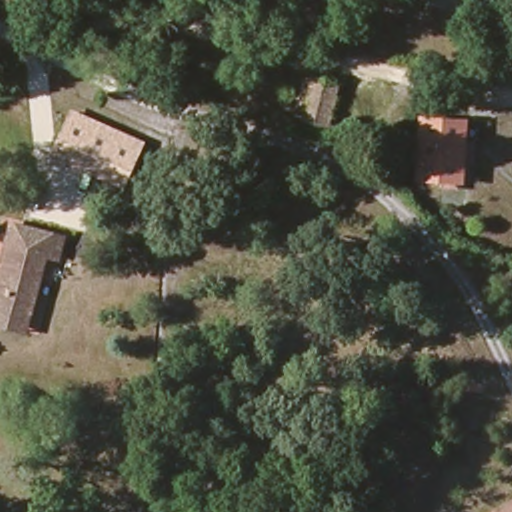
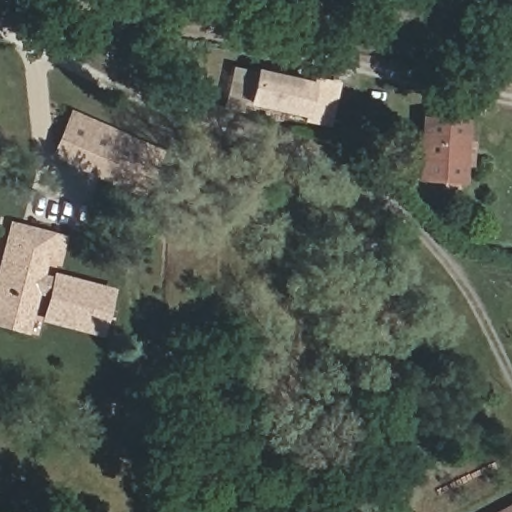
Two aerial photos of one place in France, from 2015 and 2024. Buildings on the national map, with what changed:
new [(247,105),(247,100),(227,95),(231,66),(255,71),(256,67),(312,80),(303,117),(247,105)]
unchanged [(327,125),(302,120),(312,80),(336,85),(327,125)]
unchanged [(123,191),(47,155),(70,109),(145,142),(123,191)]
unchanged [(465,182),(424,179),(427,119),(469,122),(465,182)]
unchanged [(0,310),(0,262),(10,225),(62,239),(57,260),(45,256),(29,317),(0,310)]
new [(104,337),(40,322),(46,297),(35,295),(41,273),(53,276),(54,272),(115,288),(104,337)]
unchanged [(512,508),(512,512),(505,512),(512,508)]

